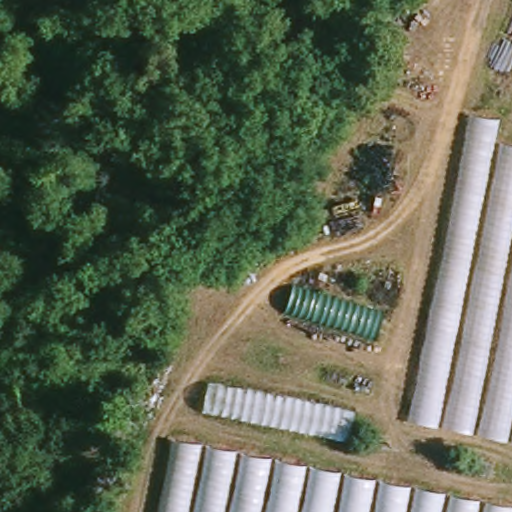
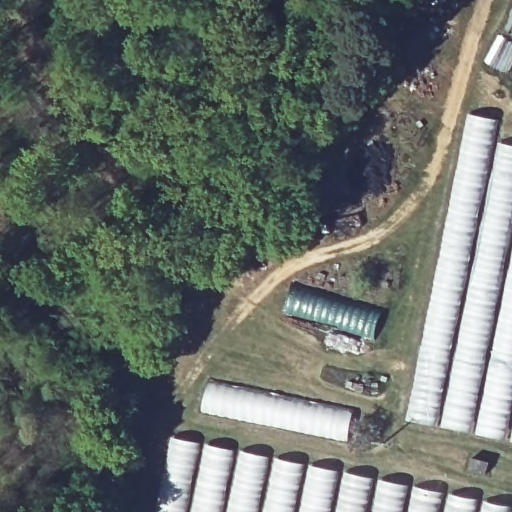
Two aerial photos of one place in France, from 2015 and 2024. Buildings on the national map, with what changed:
unchanged [(493,140),(512,144),(512,446),(405,422),(468,112),(497,119),(493,140)]
unchanged [(383,311),(377,338),(282,313),(290,285),(383,311)]
unchanged [(353,413),(346,445),(207,411),(212,382),(353,413)]
unchanged [(510,512),(155,512),(171,438),(512,506),(510,512)]

